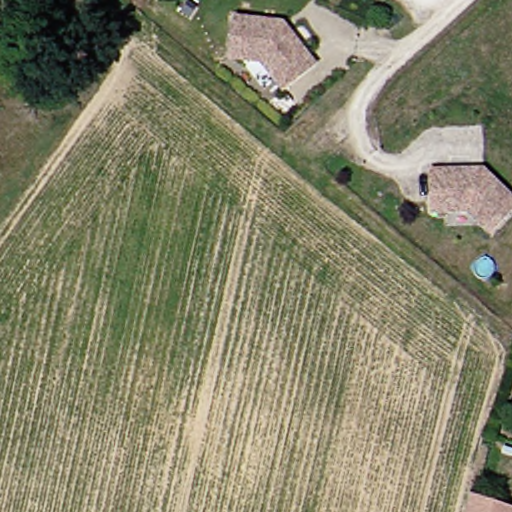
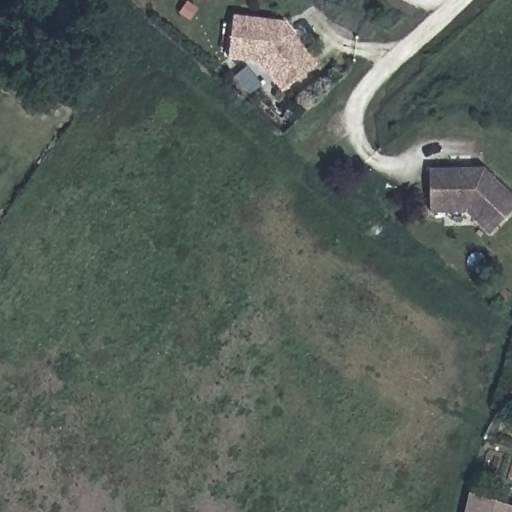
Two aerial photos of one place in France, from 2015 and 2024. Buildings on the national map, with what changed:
unchanged [(235,17),(284,20),(315,64),(284,87),(263,59),(232,57),(235,17)]
unchanged [(512,194),(512,210),(492,230),(471,207),(434,209),(434,167),(487,166),(512,194)]
unchanged [(474,497),(512,506),(512,512),(471,512),(474,497)]

